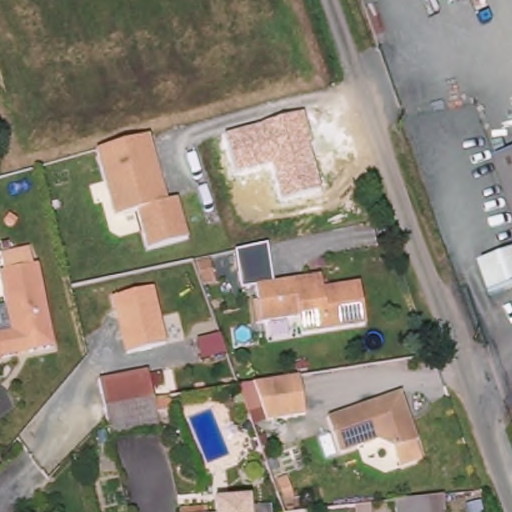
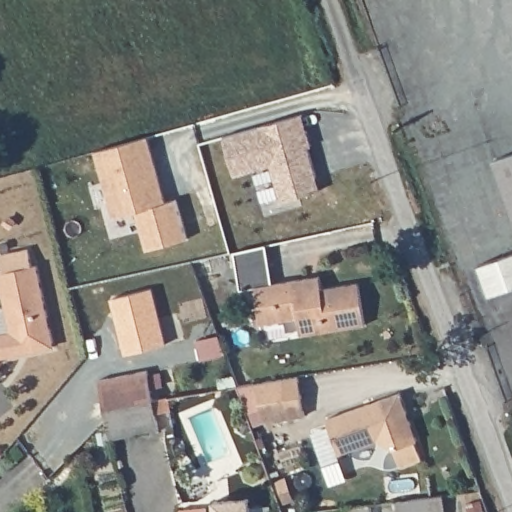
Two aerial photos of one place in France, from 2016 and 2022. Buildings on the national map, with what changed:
unchanged [(225,136),(303,116),(315,149),(308,151),(320,191),(282,201),(270,165),(234,176),(225,136)]
unchanged [(147,248),(139,212),(115,219),(95,152),(151,137),(168,200),(179,198),(190,237),(147,248)]
unchanged [(496,161),(512,156),(512,204),(496,161)]
unchanged [(240,291),(235,251),(266,243),(272,284),(255,287),(255,290),(240,291)]
unchanged [(492,297),(481,267),(512,256),(512,291),(492,297)]
unchanged [(1,360),(2,365),(0,366),(0,337),(13,334),(1,275),(39,267),(56,349),(1,360)]
unchanged [(320,277),(321,290),(358,284),(365,325),(300,335),(297,318),(260,324),(255,287),(310,278),(320,277)]
unchanged [(169,349),(127,359),(111,300),(153,292),(169,349)]
unchanged [(151,375),(155,401),(107,409),(103,384),(151,375)]
unchanged [(257,384),(300,378),(306,417),(267,423),(254,385),(257,384)]
unchanged [(403,395),(418,444),(416,444),(422,463),(400,469),(394,450),(378,442),(340,454),(328,418),(403,395)]
unchanged [(155,401),(161,433),(113,441),(107,409),(155,401)]
unchanged [(446,512),(396,512),(395,501),(444,495),(446,512)]
unchanged [(245,499),(246,512),(214,512),(214,501),(245,499)]
unchanged [(372,512),(353,512),(352,509),(371,504),(372,512)]
unchanged [(202,512),(177,512),(176,509),(201,508),(202,512)]

